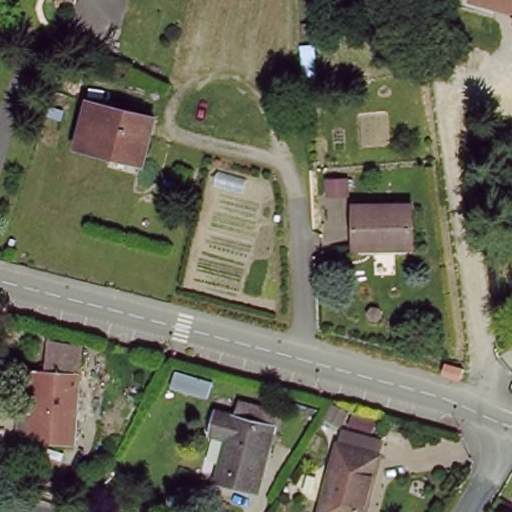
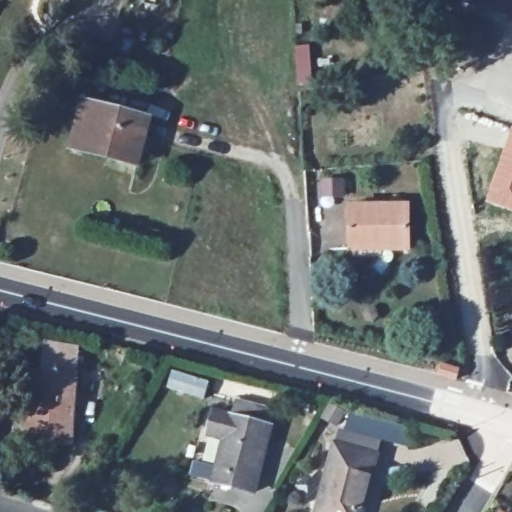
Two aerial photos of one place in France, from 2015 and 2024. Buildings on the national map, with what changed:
unchanged [(512,0),(512,20),(467,9),(469,0),(512,0)]
unchanged [(111,162),(76,152),(81,134),(87,106),(152,122),(144,151),(142,157),(139,170),(111,162)]
new [(509,126),(512,127),(512,212),(482,202),(509,126)]
unchanged [(405,205),(410,250),(353,254),(349,207),(405,205)]
unchanged [(40,372),(75,375),(71,441),(36,438),(40,372)]
unchanged [(208,410),(270,421),(257,490),(219,484),(228,440),(204,436),(208,410)]
unchanged [(333,444),(374,454),(369,466),(373,467),(363,512),(316,512),(333,444)]

